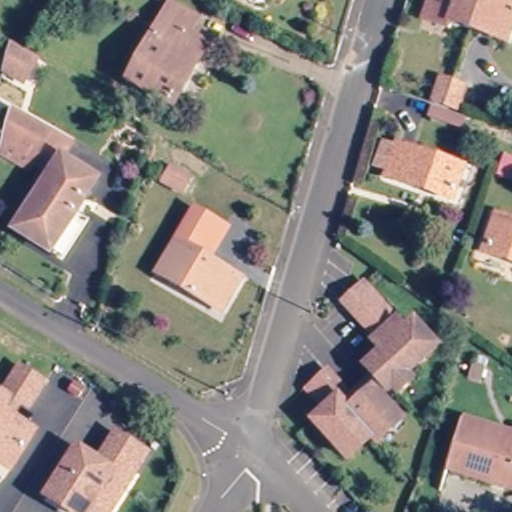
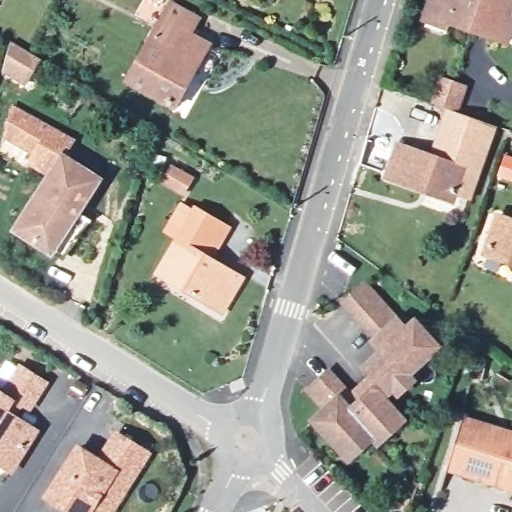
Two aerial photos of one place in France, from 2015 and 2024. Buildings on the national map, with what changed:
unchanged [(422,15),(427,0),(476,0),(466,30),(422,15)]
unchanged [(466,30),(476,0),(512,0),(512,45),(466,30)]
unchanged [(183,34),(197,42),(205,46),(195,68),(175,106),(129,84),(167,5),(191,16),(183,34)]
unchanged [(10,41),(24,49),(38,58),(23,83),(16,78),(2,69),(10,41)]
unchanged [(448,104),(436,100),(445,76),(456,80),(467,84),(460,108),(448,104)]
new [(496,129),(470,201),(453,194),(462,167),(430,156),(446,111),(496,129)]
unchanged [(52,255),(10,228),(45,172),(26,160),(24,165),(0,150),(0,134),(5,119),(80,167),(79,171),(97,183),(78,215),(85,219),(60,260),(52,255)]
unchanged [(388,181),(392,171),(380,166),(388,144),(400,148),(401,145),(462,167),(450,203),(388,181)]
unchanged [(503,174),(509,157),(512,158),(512,178),(503,174)]
unchanged [(181,194),(157,182),(167,162),(190,175),(181,194)]
unchanged [(175,239),(195,205),(230,227),(210,261),(175,239)]
unchanged [(497,259),(510,220),(512,221),(512,264),(497,259)]
unchanged [(215,308),(155,268),(175,239),(235,276),(215,308)]
unchanged [(325,413),(310,395),(333,375),(351,394),(371,376),(365,367),(375,355),(369,347),(374,341),(343,304),(364,287),(400,327),(409,319),(432,345),(380,390),(408,422),(380,447),(375,441),(348,464),(315,426),(325,413)]
unchanged [(3,394),(20,366),(46,382),(29,410),(20,405),(14,416),(6,411),(12,400),(3,394)]
unchanged [(12,400),(6,411),(14,416),(36,430),(12,468),(0,461),(0,393),(3,394),(12,400)]
unchanged [(464,419),(512,433),(512,473),(453,455),(464,419)]
unchanged [(66,506),(70,500),(53,489),(80,446),(101,460),(119,432),(149,451),(112,512),(111,512),(95,502),(90,512),(75,512),(66,506)]
unchanged [(453,455),(512,473),(512,490),(448,472),(453,455)]

